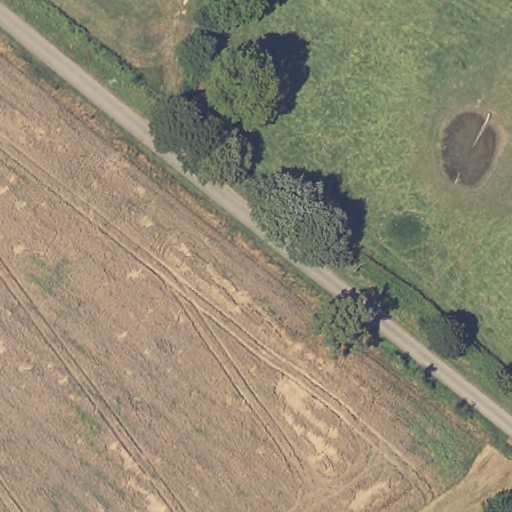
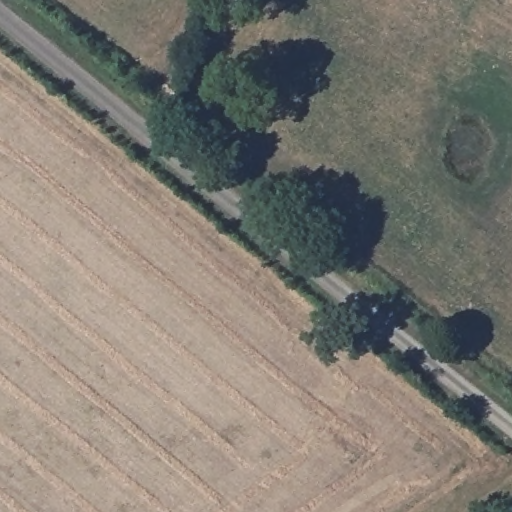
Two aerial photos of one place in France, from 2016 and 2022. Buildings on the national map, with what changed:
[]

